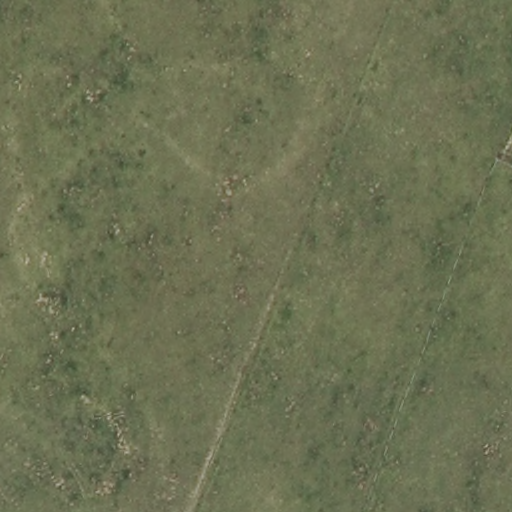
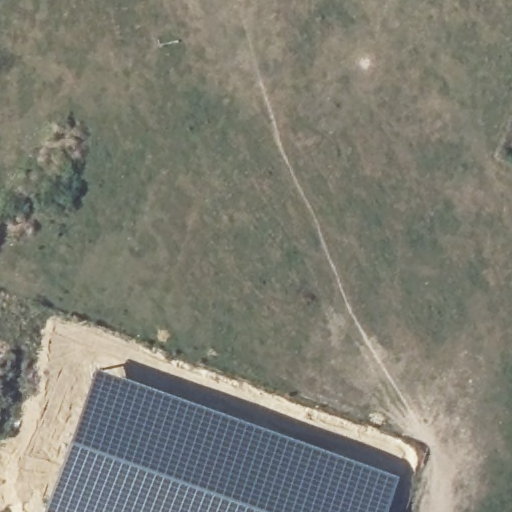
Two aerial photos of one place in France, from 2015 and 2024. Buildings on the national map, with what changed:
new [(95,367),(175,394),(400,475),(387,512),(41,512),(40,512),(95,367)]

